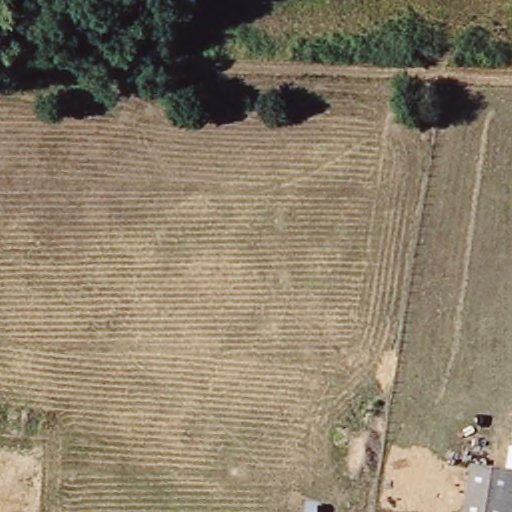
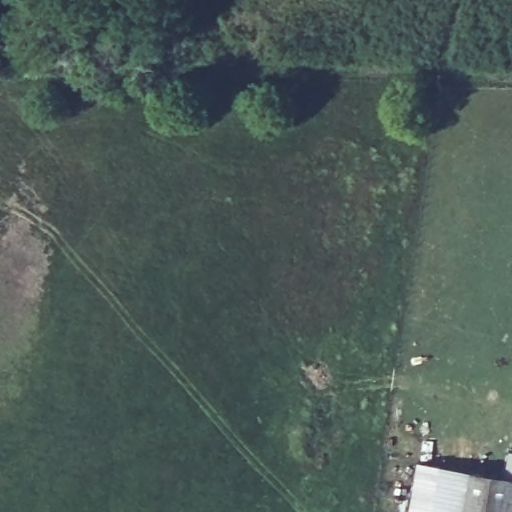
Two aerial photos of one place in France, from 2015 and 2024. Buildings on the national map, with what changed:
unchanged [(510,450),(512,451),(512,478),(507,477),(510,450)]
new [(470,471),(464,512),(411,512),(420,461),(470,471)]
unchanged [(512,479),(512,512),(464,512),(470,471),(512,479)]

